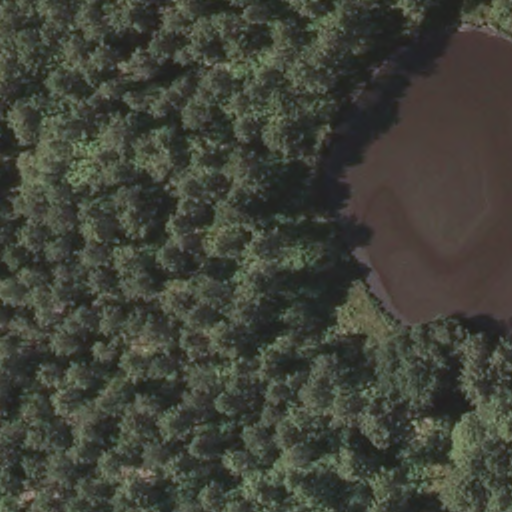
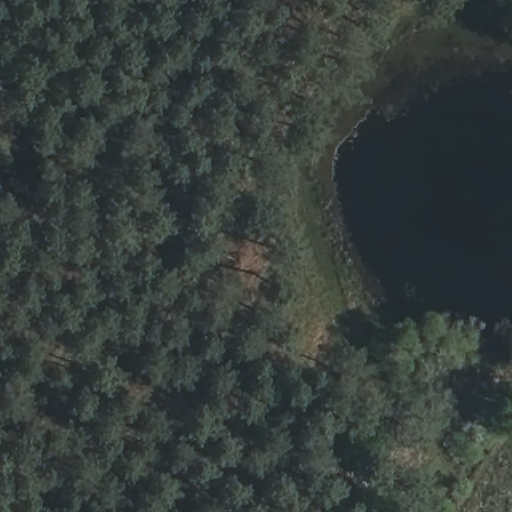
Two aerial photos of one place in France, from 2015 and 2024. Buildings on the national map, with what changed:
[]

